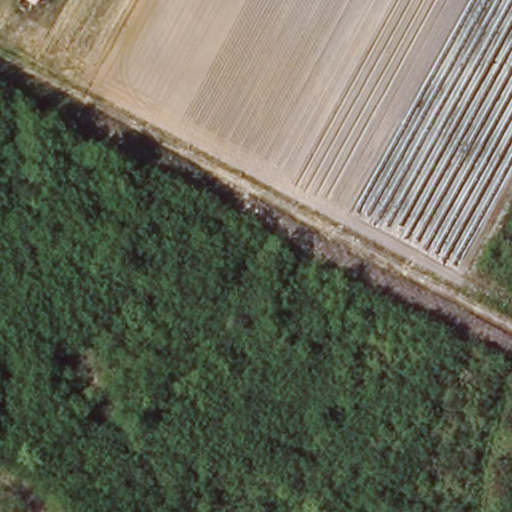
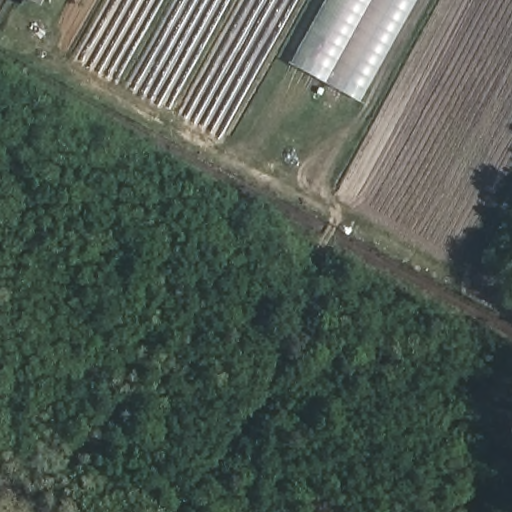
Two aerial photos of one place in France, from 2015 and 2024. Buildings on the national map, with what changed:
new [(323,0),(413,0),(356,101),(288,63),(323,0)]

